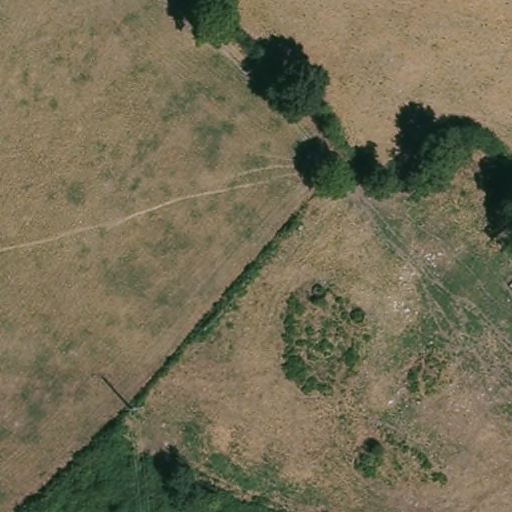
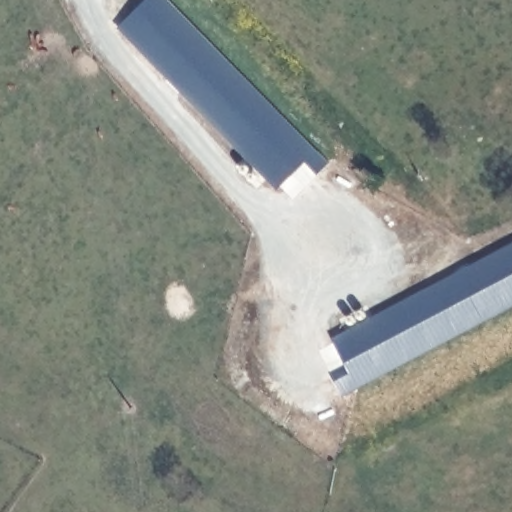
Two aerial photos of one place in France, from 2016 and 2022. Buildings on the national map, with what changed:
new [(304,161),(276,189),(117,26),(144,0),(168,0),(328,163),(316,174),(304,161)]
new [(336,382),(348,374),(331,339),(512,243),(512,305),(343,394),(336,382)]

